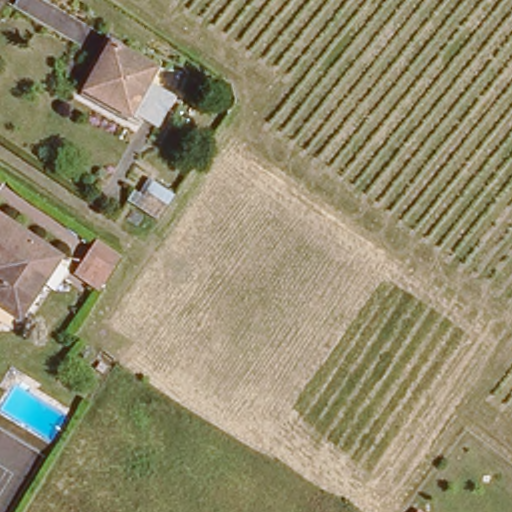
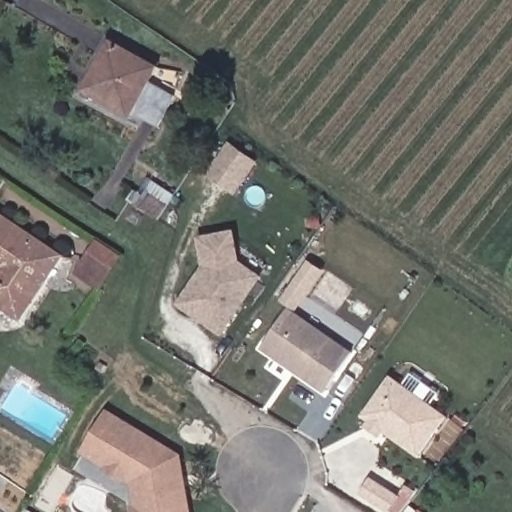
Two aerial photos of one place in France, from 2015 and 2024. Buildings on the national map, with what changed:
unchanged [(149,76),(123,122),(82,99),(103,66),(96,62),(104,49),(149,76)]
new [(235,196),(206,174),(230,141),(260,162),(235,196)]
unchanged [(58,261),(18,320),(0,307),(0,221),(58,261)]
new [(263,276),(222,335),(177,303),(204,266),(203,266),(199,237),(236,230),(242,262),(263,276)]
unchanged [(123,255),(100,288),(75,273),(98,239),(123,255)]
new [(311,262),(323,271),(296,307),(285,299),(311,262)]
new [(324,393),(262,348),(290,307),(354,352),(324,393)]
new [(379,437),(366,427),(369,421),(362,416),(391,375),(448,416),(419,457),(383,432),(379,437)]
new [(182,455),(192,512),(131,512),(130,506),(135,506),(130,482),(123,482),(106,472),(106,467),(81,452),(108,408),(182,455)]
new [(402,512),(392,512),(362,493),(371,479),(401,498),(409,503),(402,512)]

